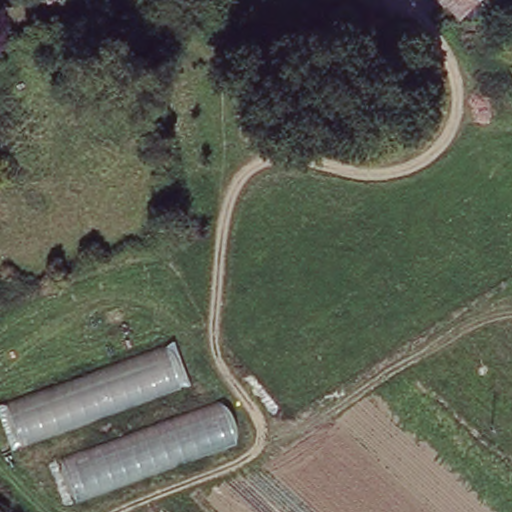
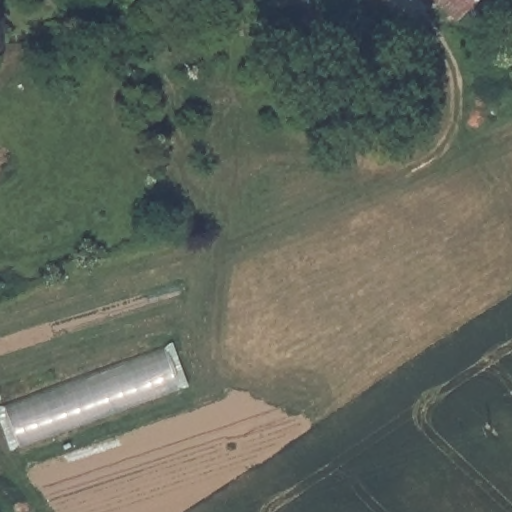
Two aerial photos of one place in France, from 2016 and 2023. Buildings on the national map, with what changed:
unchanged [(436,0),(481,0),(458,23),(436,0)]
unchanged [(0,417),(0,408),(176,345),(190,387),(10,450),(0,417)]
demolished [(246,446),(72,512),(66,512),(50,468),(229,400),(246,446)]

